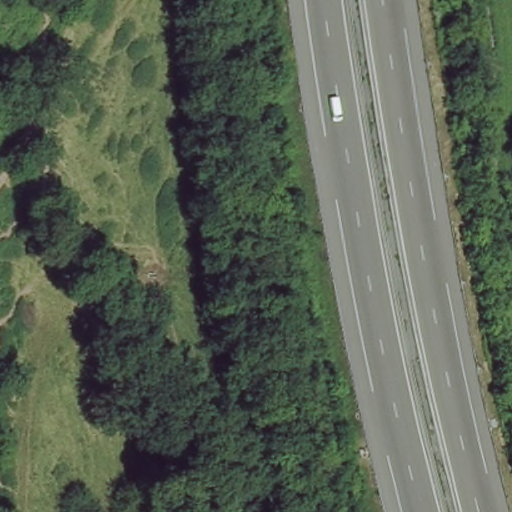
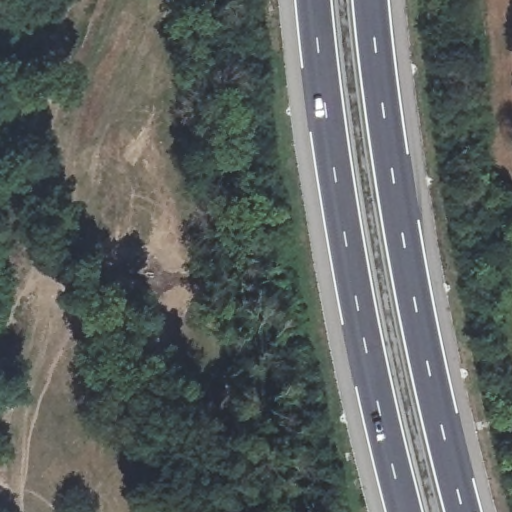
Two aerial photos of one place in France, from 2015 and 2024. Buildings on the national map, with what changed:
[]

